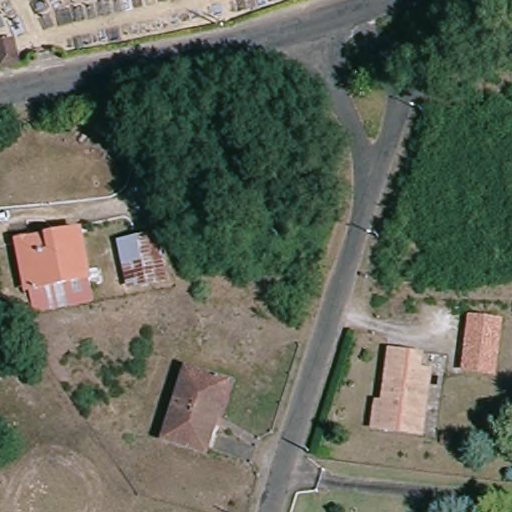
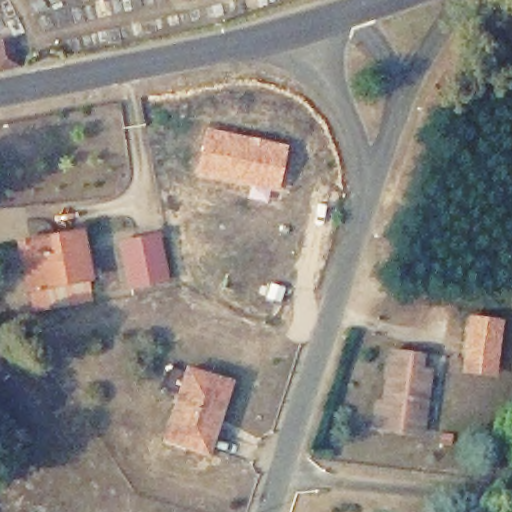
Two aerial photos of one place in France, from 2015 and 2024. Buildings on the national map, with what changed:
unchanged [(10,67),(0,69),(0,42),(5,41),(10,67)]
new [(205,127),(288,144),(278,192),(195,175),(205,127)]
unchanged [(30,300),(22,260),(25,258),(20,232),(77,221),(90,288),(30,300)]
unchanged [(132,283),(125,244),(159,236),(166,276),(132,283)]
unchanged [(503,319),(496,376),(461,370),(468,315),(503,319)]
unchanged [(421,360),(419,374),(428,375),(420,435),(371,429),(373,405),(381,406),(388,355),(421,360)]
unchanged [(225,387),(202,455),(164,441),(185,375),(225,387)]

